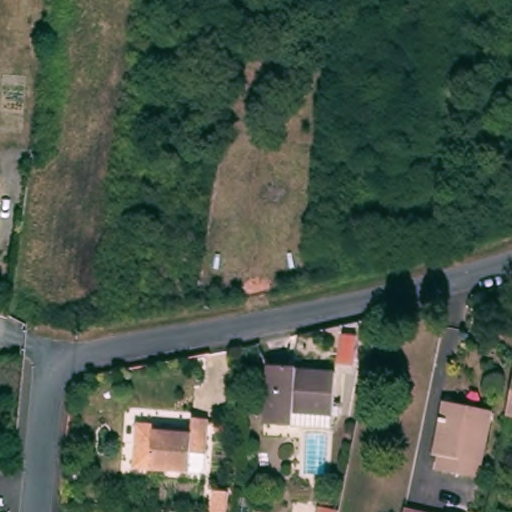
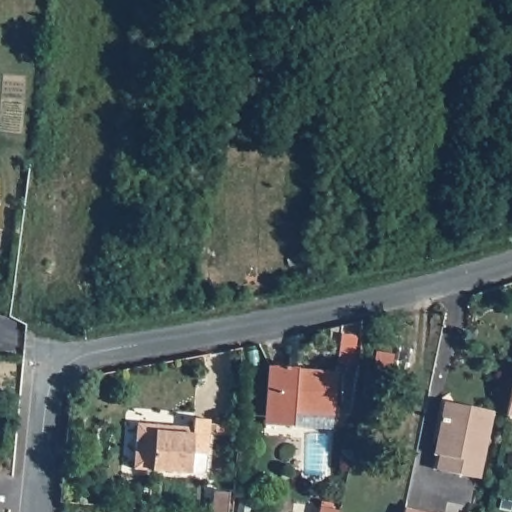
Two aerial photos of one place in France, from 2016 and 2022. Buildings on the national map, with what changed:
unchanged [(301,430),(273,428),(278,370),(305,372),(305,374),(343,377),(339,420),(338,433),(301,430)]
unchanged [(499,411),(486,478),(446,469),(449,455),(443,453),(454,401),(499,411)]
unchanged [(198,428),(199,418),(217,420),(214,455),(212,471),(208,474),(196,473),(141,467),(146,422),(198,428)]
unchanged [(208,512),(210,492),(225,493),(223,512),(208,512)]
unchanged [(300,512),(302,503),(342,510),(342,512),(300,512)]
unchanged [(407,512),(408,508),(426,512),(407,512)]

